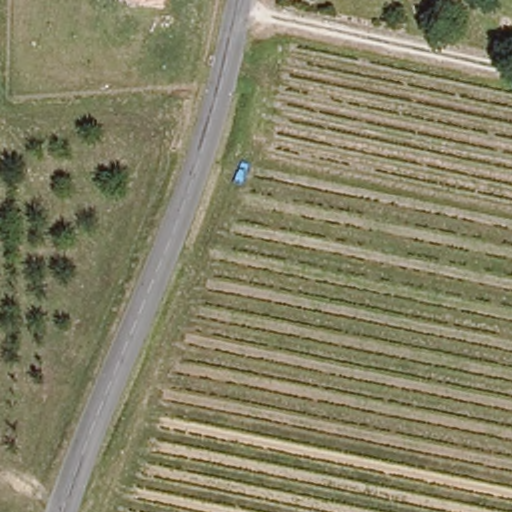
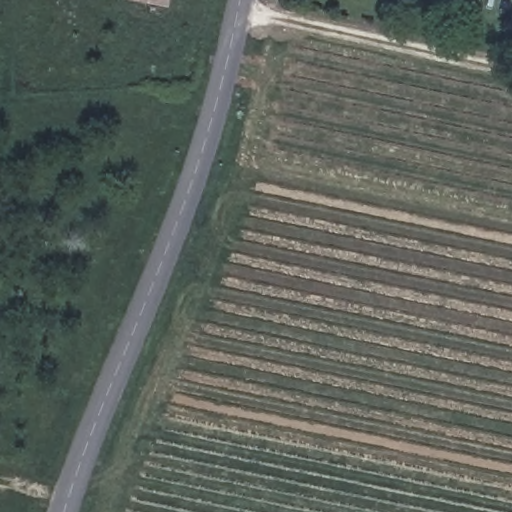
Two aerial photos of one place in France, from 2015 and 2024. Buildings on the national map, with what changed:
unchanged [(133,0),(166,0),(165,6),(133,0)]

